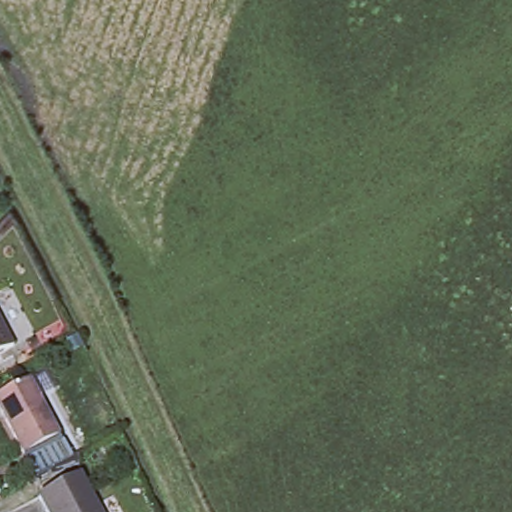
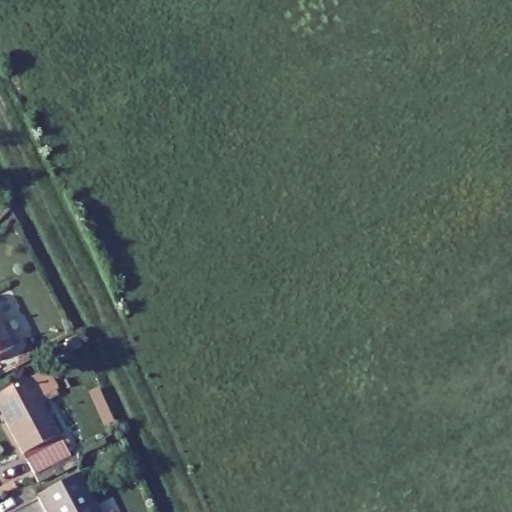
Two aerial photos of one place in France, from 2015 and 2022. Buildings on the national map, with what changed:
unchanged [(0,354),(0,327),(12,348),(0,354)]
unchanged [(62,432),(28,451),(0,396),(0,391),(32,374),(62,432)]
unchanged [(56,443),(65,459),(40,473),(31,455),(56,443)]
unchanged [(38,497),(77,478),(95,512),(46,512),(38,497)]

